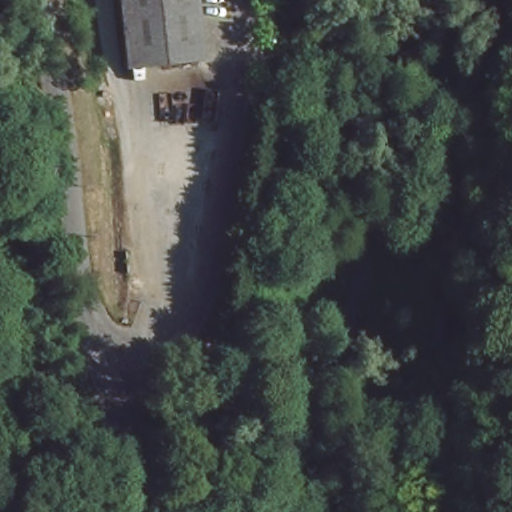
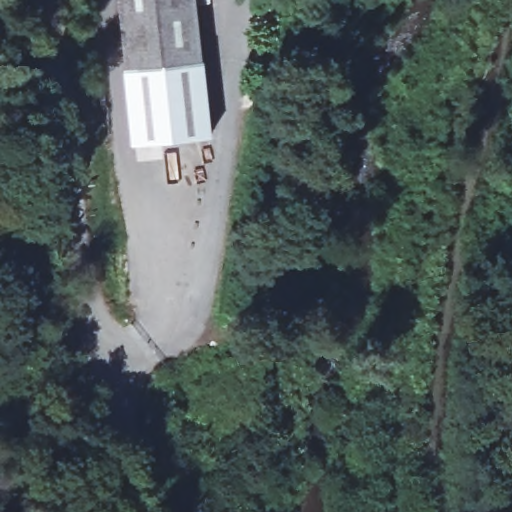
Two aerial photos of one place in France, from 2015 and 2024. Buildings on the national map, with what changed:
unchanged [(195,55),(118,63),(111,0),(188,0),(195,55)]
new [(195,55),(203,54),(213,135),(130,143),(123,62),(195,55)]

